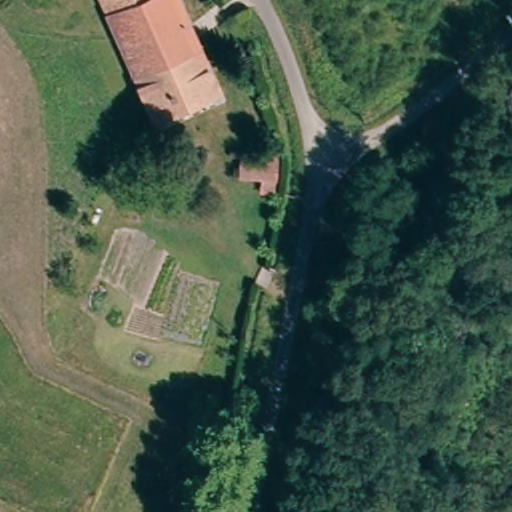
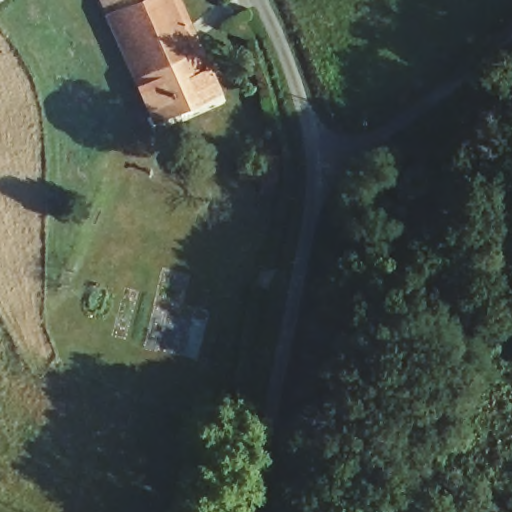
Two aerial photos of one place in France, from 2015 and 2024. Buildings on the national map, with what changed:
unchanged [(115,26),(106,0),(162,0),(164,4),(115,26)]
unchanged [(223,99),(163,128),(115,26),(164,4),(173,0),(177,0),(223,99)]
unchanged [(273,145),(271,165),(234,163),(234,141),(273,145)]

